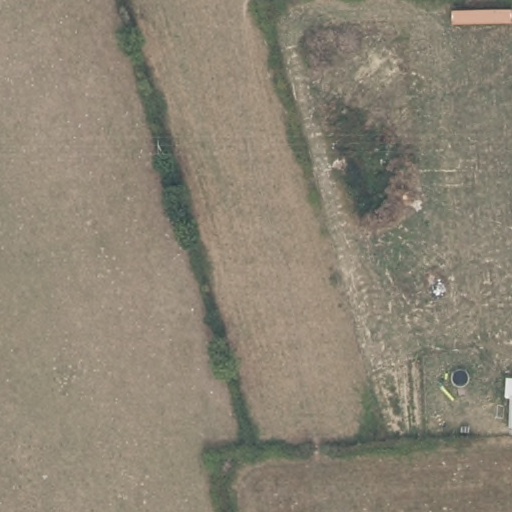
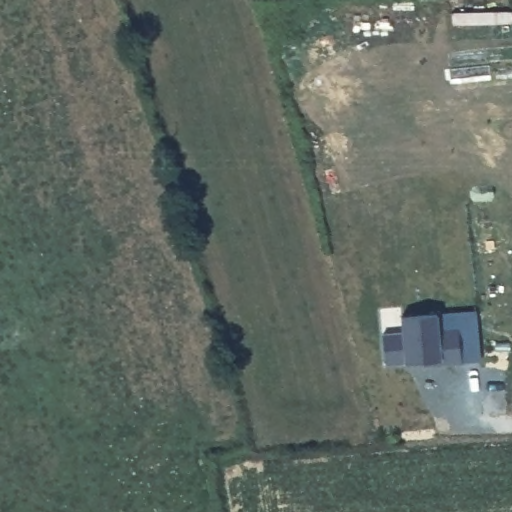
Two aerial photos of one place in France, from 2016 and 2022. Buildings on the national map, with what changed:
new [(401,330),(399,317),(435,314),(455,313),(461,364),(421,368),(419,360),(403,362),(382,363),(379,332),(401,330)]

